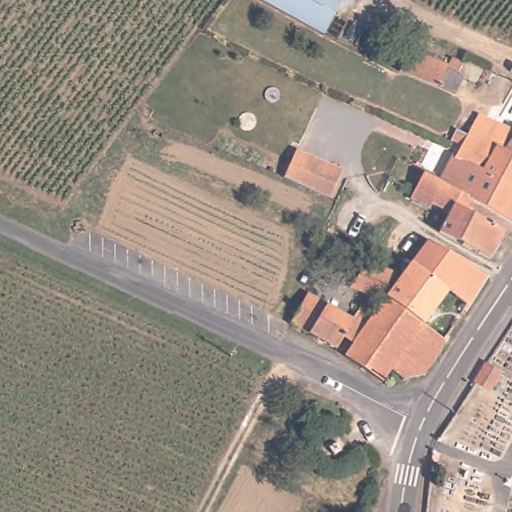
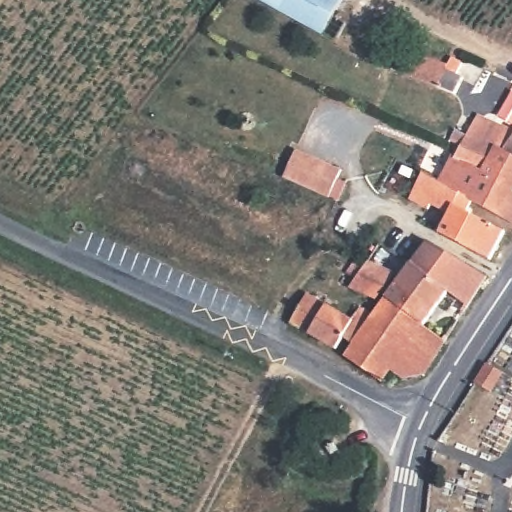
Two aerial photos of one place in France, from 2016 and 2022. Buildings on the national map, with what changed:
unchanged [(361,49),(327,33),(269,0),(344,0),(337,15),(369,31),(361,49)]
unchanged [(458,57),(454,68),(466,74),(456,94),(432,86),(398,68),(411,44),(445,61),(450,52),(458,57)]
unchanged [(432,176),(444,156),(449,158),(456,150),(449,144),(455,133),(458,136),(463,136),(467,133),(476,112),(512,128),(512,218),(470,196),(432,176)]
unchanged [(309,137),(355,158),(343,185),(297,165),(309,137)]
unchanged [(464,207),(454,200),(449,210),(409,190),(420,170),(432,176),(470,196),(464,207)]
unchanged [(500,229),(481,255),(441,228),(449,210),(454,200),(464,207),(500,229)]
unchanged [(487,287),(469,312),(450,298),(424,330),(388,303),(414,270),(432,246),(487,287)]
unchanged [(384,290),(355,279),(358,267),(348,265),(371,249),(404,265),(384,290)]
unchanged [(352,315),(376,293),(388,303),(362,347),(347,340),(337,353),(290,329),(306,294),(352,315)]
unchanged [(388,303),(424,330),(445,346),(425,374),(405,382),(396,373),(385,382),(353,362),(362,347),(388,303)]
unchanged [(506,371),(490,393),(474,382),(490,358),(506,371)]

